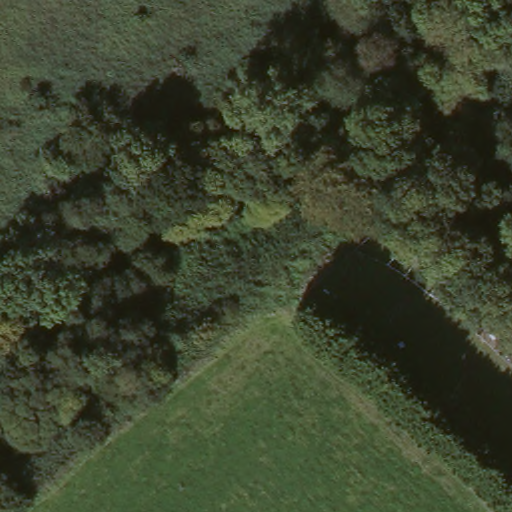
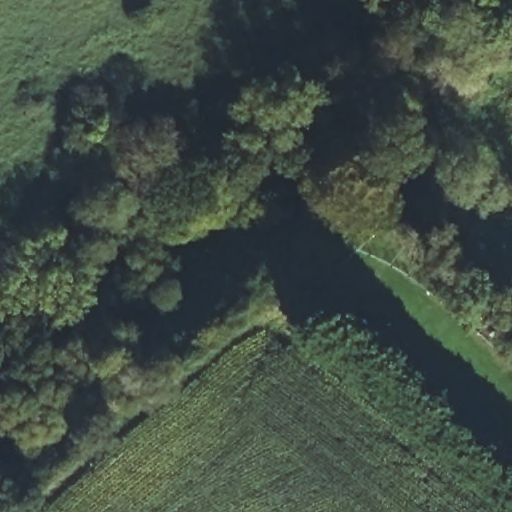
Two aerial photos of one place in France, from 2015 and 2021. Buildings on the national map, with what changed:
[]

